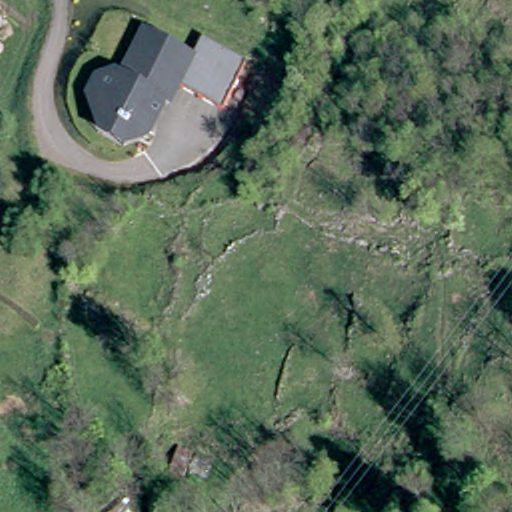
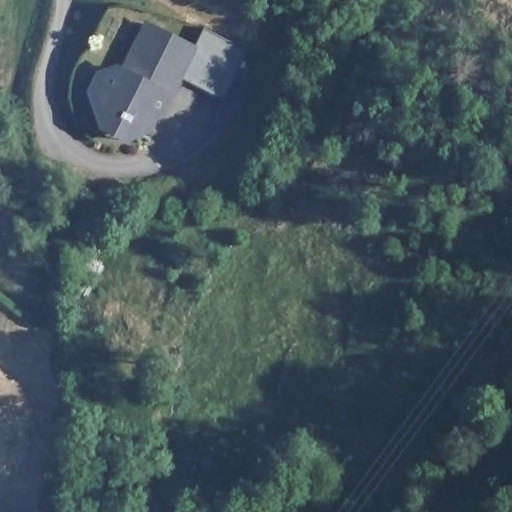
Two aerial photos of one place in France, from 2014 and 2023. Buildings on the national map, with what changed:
unchanged [(225,99),(184,78),(177,95),(170,90),(153,130),(130,141),(97,131),(85,98),(95,74),(125,64),(142,24),(196,45),(203,29),(247,50),(225,99)]

